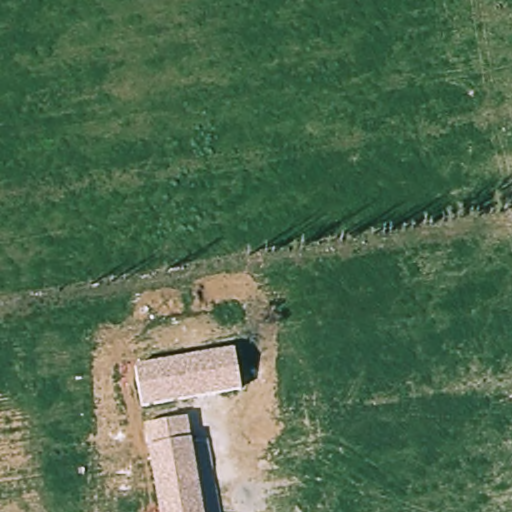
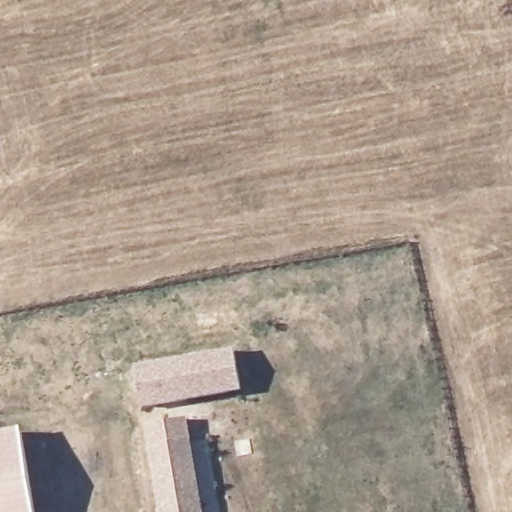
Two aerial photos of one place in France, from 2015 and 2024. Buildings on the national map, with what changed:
unchanged [(242,392),(143,408),(135,368),(235,349),(242,392)]
unchanged [(159,512),(145,426),(189,419),(205,512),(159,512)]
new [(35,512),(0,512),(0,434),(22,430),(35,512)]

